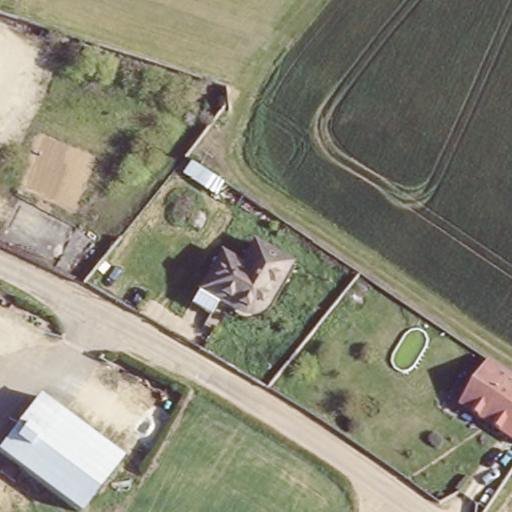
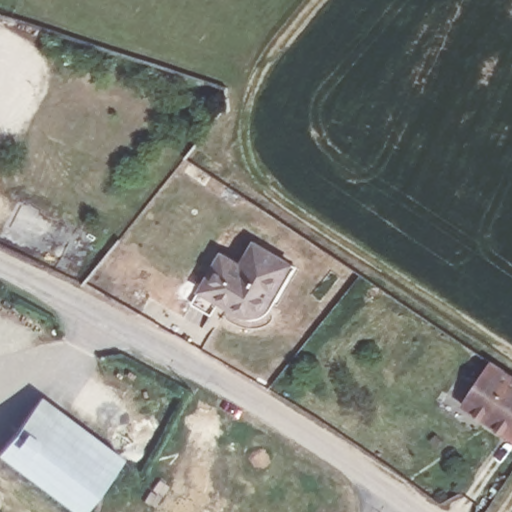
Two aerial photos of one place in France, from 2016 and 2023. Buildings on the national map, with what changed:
unchanged [(194,290),(202,279),(237,229),(291,265),(256,318),(221,292),(211,305),(194,290)]
unchanged [(512,436),(464,401),(492,360),(512,374),(512,436)]
unchanged [(123,457),(84,512),(82,512),(0,454),(0,447),(36,397),(123,457)]

